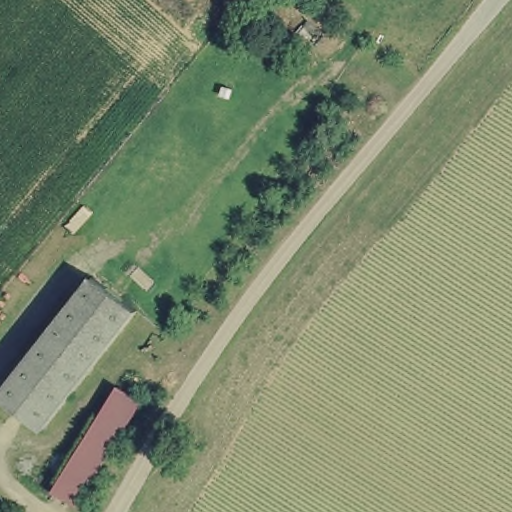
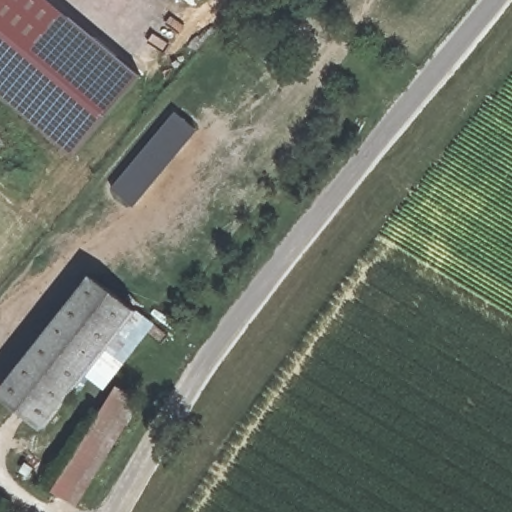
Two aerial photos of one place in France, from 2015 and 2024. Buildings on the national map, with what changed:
new [(72,156),(0,96),(0,0),(48,0),(140,76),(72,156)]
unchanged [(0,399),(0,391),(88,276),(133,309),(41,429),(0,399)]
unchanged [(117,385),(143,400),(83,506),(54,489),(117,385)]

